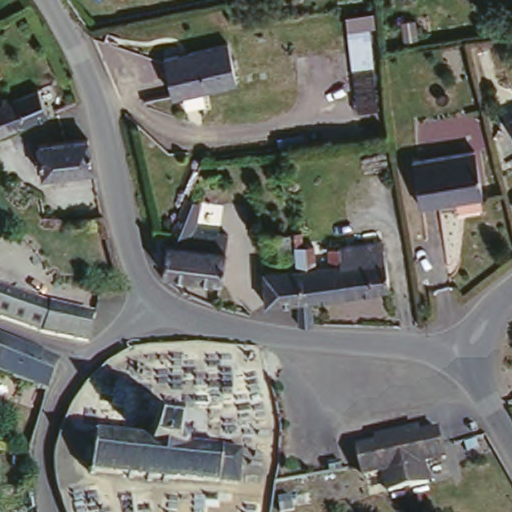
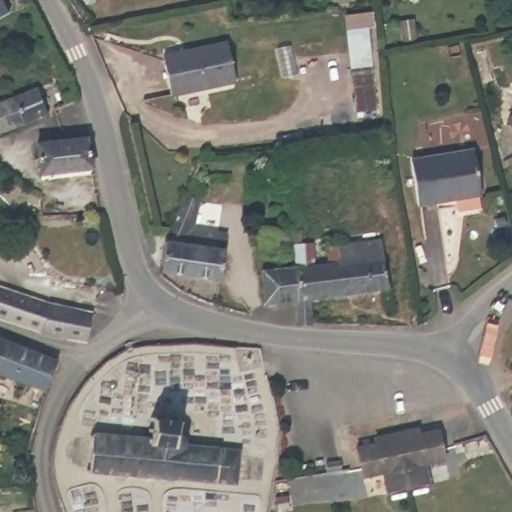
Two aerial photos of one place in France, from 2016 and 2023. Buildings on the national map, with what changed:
unchanged [(345,25),(369,24),(377,108),(356,109),(345,25)]
unchanged [(225,38),(232,80),(168,93),(160,52),(225,38)]
unchanged [(37,82),(48,107),(0,129),(0,99),(37,82)]
unchanged [(512,121),(510,117),(512,116),(512,121)]
unchanged [(41,169),(37,139),(87,134),(92,163),(41,169)]
unchanged [(475,146),(482,190),(420,201),(412,156),(475,146)]
unchanged [(196,195),(192,223),(223,228),(218,275),(158,266),(164,232),(182,190),(196,195)]
unchanged [(255,267),(282,264),(281,250),(258,251),(256,229),(280,227),(287,226),(293,227),(295,242),(304,241),(305,261),(314,259),(314,244),(332,242),(332,258),(333,290),(300,294),(304,321),(289,320),(286,296),(256,301),(255,267)]
unchanged [(363,253),(362,240),(373,238),(379,284),(333,290),(332,258),(363,253)]
unchanged [(49,301),(92,308),(87,336),(41,328),(0,313),(0,285),(49,301)]
unchanged [(57,361),(55,364),(61,366),(55,383),(50,381),(46,391),(0,373),(0,339),(57,361)]
unchanged [(93,435),(93,433),(96,433),(96,436),(127,439),(127,436),(132,436),(132,439),(148,441),(148,438),(151,438),(151,433),(148,433),(148,429),(151,429),(152,422),(149,422),(149,418),(152,418),(152,415),(157,416),(156,419),(164,419),(164,416),(167,416),(167,420),(178,421),(178,417),(182,417),(182,422),(184,422),(184,425),(182,425),(182,435),(185,437),(186,440),(186,444),(188,445),(189,442),(192,442),(192,446),(211,448),(212,444),(216,444),(216,448),(239,451),(237,485),(169,479),(169,482),(164,482),(164,479),(152,477),(152,480),(147,480),(147,477),(133,476),(133,479),(129,478),(128,475),(95,472),(94,475),(91,475),(91,472),(88,471),(88,468),(91,468),(93,439),(90,439),(90,435),(93,435)]
unchanged [(378,445),(375,438),(415,429),(419,436),(439,431),(445,458),(417,464),(420,474),(427,472),(428,482),(392,490),(390,481),(395,478),(392,470),(364,476),(358,449),(378,445)]

